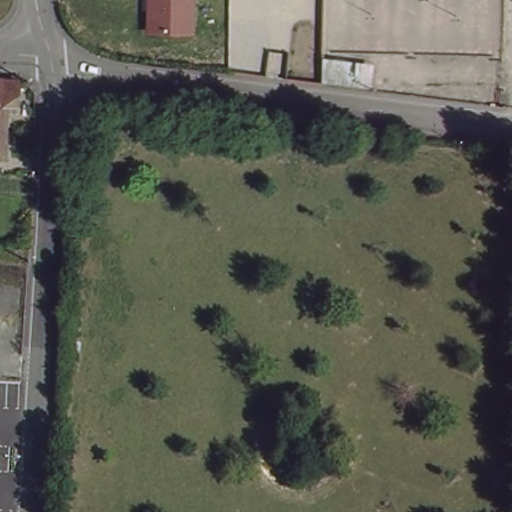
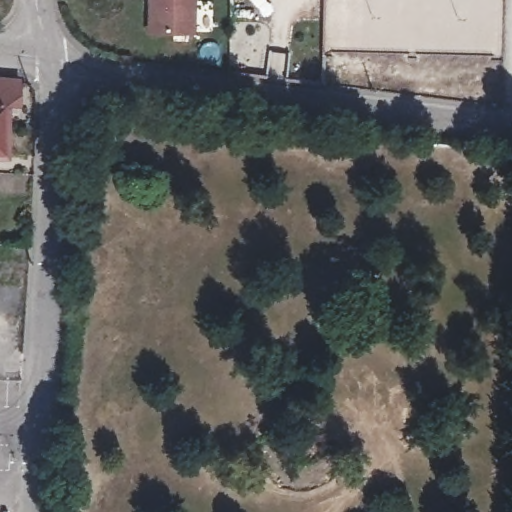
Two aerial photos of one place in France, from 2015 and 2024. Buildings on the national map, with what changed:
unchanged [(193,33),(145,31),(146,0),(194,0),(193,33)]
unchanged [(372,68),(369,86),(324,81),(325,76),(325,61),(372,68)]
unchanged [(20,112),(12,111),(11,156),(0,156),(0,79),(22,81),(20,112)]

